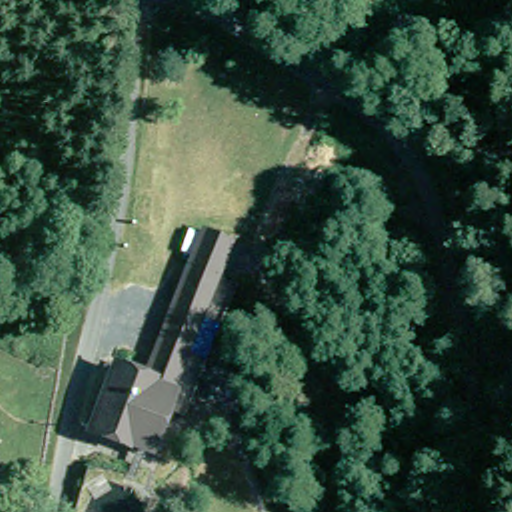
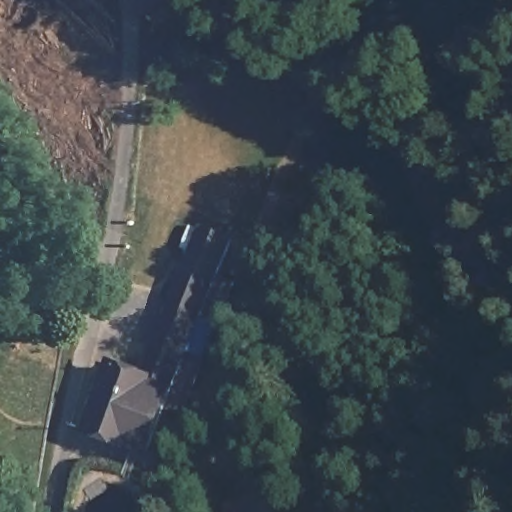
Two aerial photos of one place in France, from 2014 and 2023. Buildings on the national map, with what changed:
unchanged [(171,411),(157,406),(140,448),(84,428),(107,365),(137,376),(195,229),(224,240),(172,370),(185,375),(171,411)]

